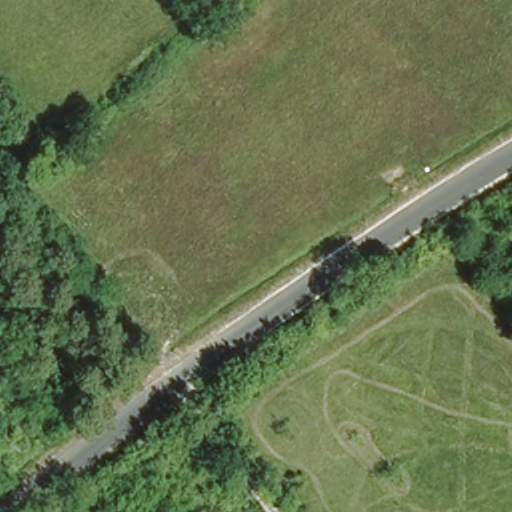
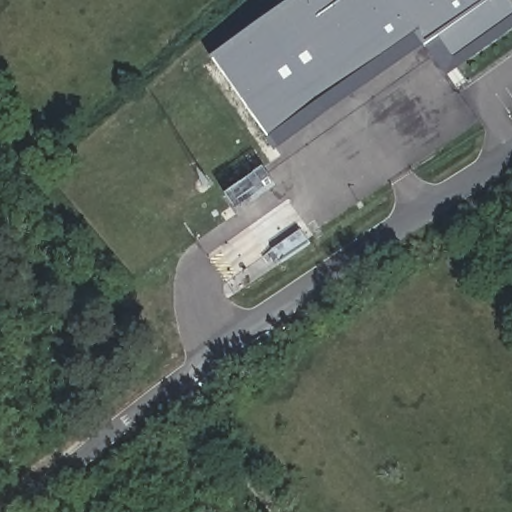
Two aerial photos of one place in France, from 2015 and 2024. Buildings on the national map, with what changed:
new [(426,46),(275,152),(212,59),(294,0),(510,0),(512,2),(512,29),(444,75),(426,46)]
new [(299,229),(309,242),(280,261),(271,249),(299,229)]

